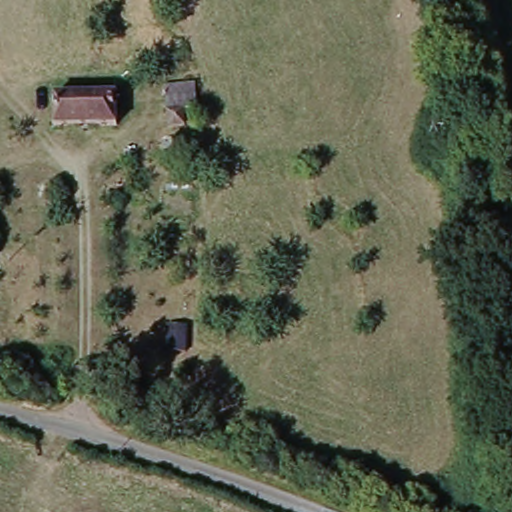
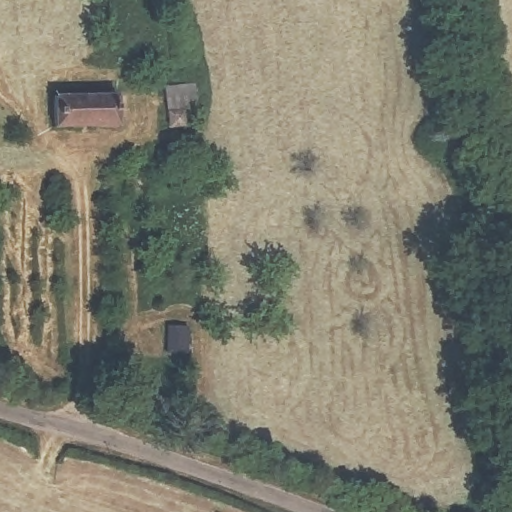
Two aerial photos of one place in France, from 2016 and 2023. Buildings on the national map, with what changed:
unchanged [(196,92),(197,107),(185,108),(186,129),(170,128),(169,94),(196,92)]
unchanged [(117,97),(119,131),(56,131),(57,98),(117,97)]
unchanged [(187,355),(167,354),(168,326),(191,329),(187,355)]

